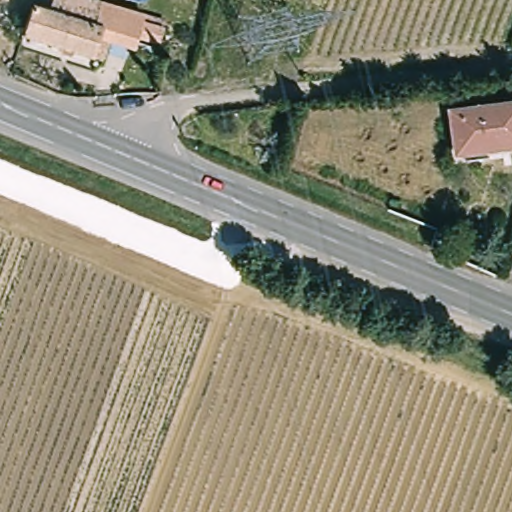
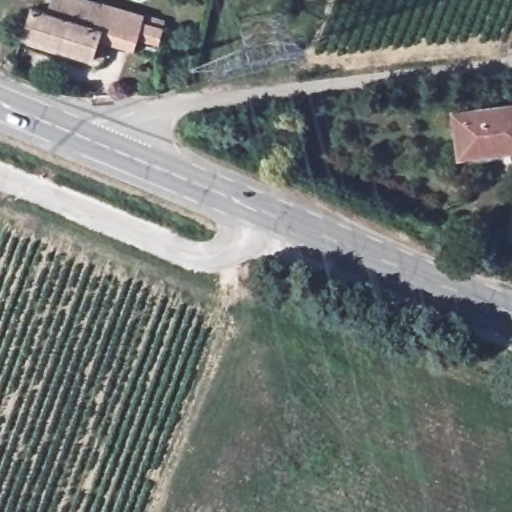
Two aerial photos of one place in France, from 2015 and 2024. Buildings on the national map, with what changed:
unchanged [(158,48),(138,42),(134,54),(97,43),(93,58),(91,61),(19,39),(30,8),(49,13),(53,0),(87,0),(146,18),(144,25),(163,32),(158,48)]
unchanged [(512,102),(512,149),(458,157),(453,110),(512,102)]

